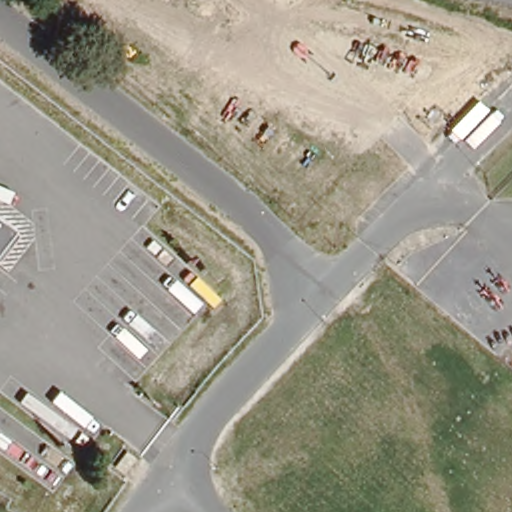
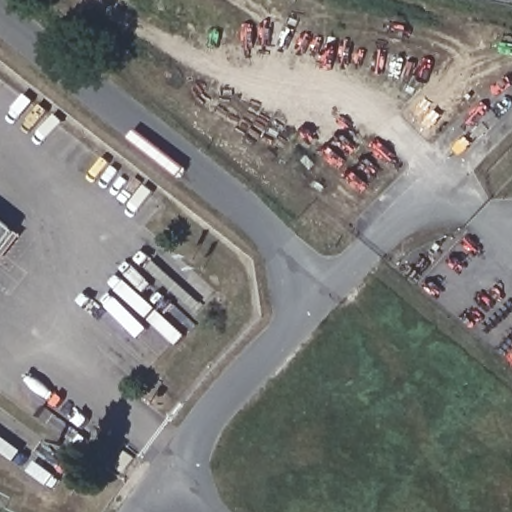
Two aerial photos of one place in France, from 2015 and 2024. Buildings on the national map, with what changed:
unchanged [(0,254),(0,221),(16,233),(0,254)]

